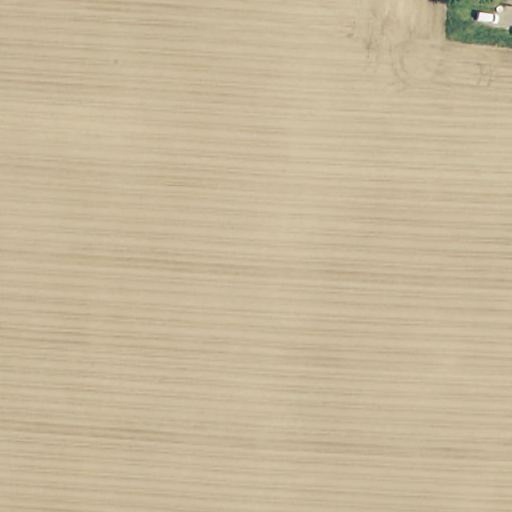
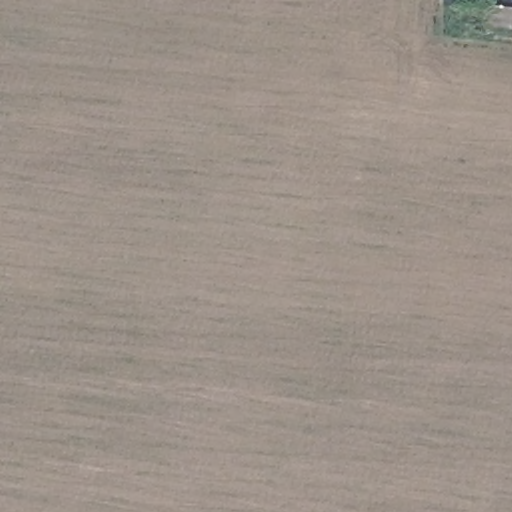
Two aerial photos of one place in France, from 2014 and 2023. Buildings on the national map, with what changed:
[]

